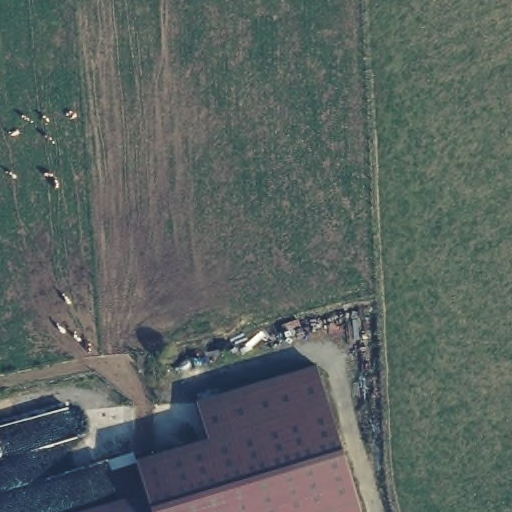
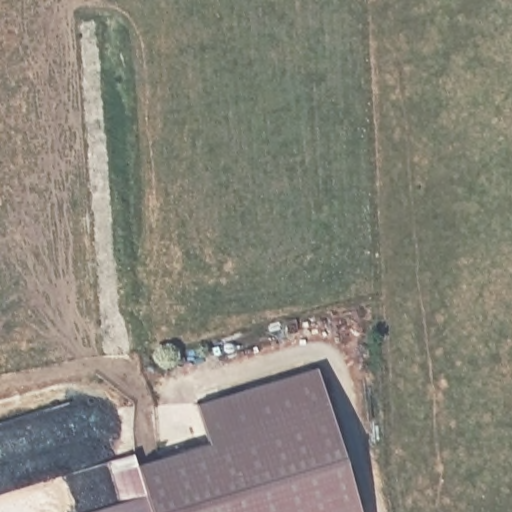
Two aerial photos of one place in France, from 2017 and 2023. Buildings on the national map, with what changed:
unchanged [(122,497),(114,470),(207,443),(195,405),(317,371),(357,501),(322,512),(73,512),(122,497)]
unchanged [(360,512),(322,512),(357,501),(360,512)]

